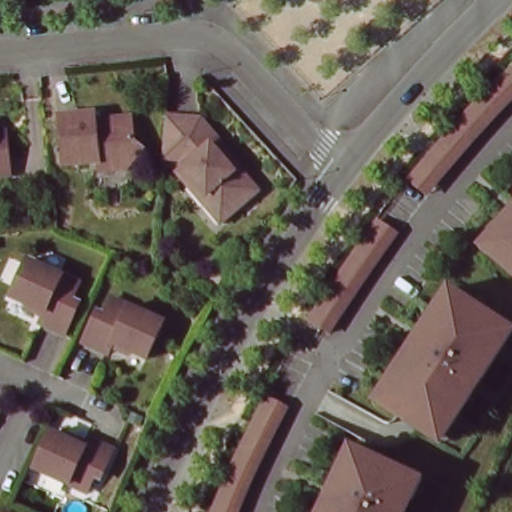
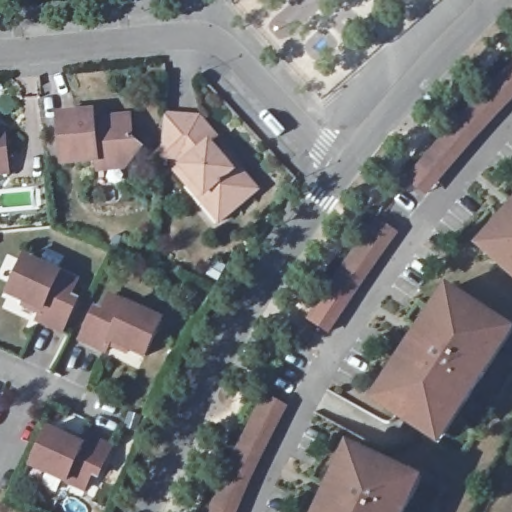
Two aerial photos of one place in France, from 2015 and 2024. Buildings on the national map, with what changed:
unchanged [(483,135),(425,204),(407,188),(512,68),(512,105),(483,135)]
unchanged [(96,160),(62,164),(58,115),(93,111),(94,119),(129,115),(132,140),(141,147),(124,168),(97,170),(96,160)]
unchanged [(194,186),(180,170),(188,164),(183,159),(166,157),(169,114),(204,116),(222,137),(215,142),(225,154),(229,150),(242,166),(262,190),(230,218),(224,222),(194,186)]
unchanged [(0,129),(4,129),(4,136),(8,172),(0,173),(0,129)]
unchanged [(402,234),(331,340),(309,326),(378,215),(402,234)]
unchanged [(505,236),(500,231),(512,217),(512,271),(491,252),(505,236)]
unchanged [(32,302),(30,306),(18,300),(20,296),(3,289),(19,252),(72,275),(64,292),(71,295),(57,326),(32,315),(37,305),(32,302)]
unchanged [(401,376),(407,380),(418,364),(412,360),(432,330),(438,335),(449,317),(442,313),(459,289),(505,320),(496,332),(508,340),(490,367),(496,372),(476,402),(470,398),(451,426),(440,418),(431,431),(385,401),(401,376)]
unchanged [(106,335),(101,346),(75,335),(89,304),(96,307),(104,290),(156,314),(140,351),(123,343),(121,347),(109,341),(111,338),(106,335)]
unchanged [(292,401),(243,512),(213,512),(266,389),(292,401)]
unchanged [(81,431),(106,442),(93,471),(87,468),(79,485),(26,460),(43,424),(59,431),(61,427),(68,430),(79,435),(81,431)]
unchanged [(418,477),(409,495),(416,498),(409,512),(333,512),(338,501),(331,498),(346,466),(353,470),(362,450),(418,477)]

